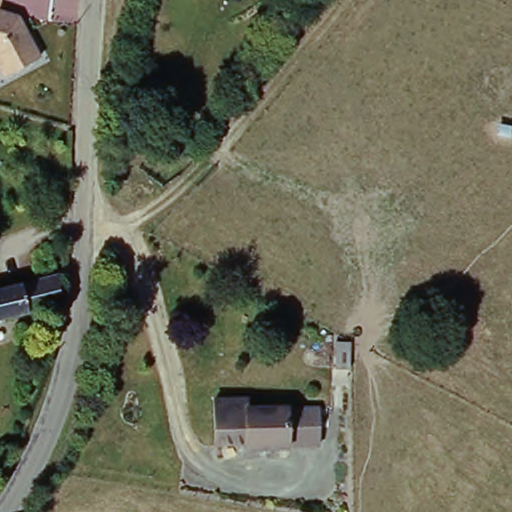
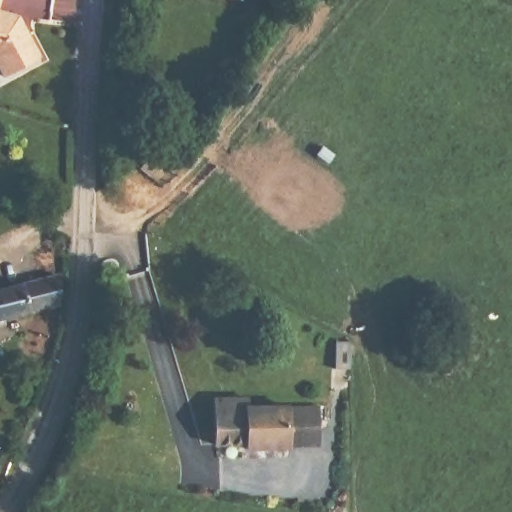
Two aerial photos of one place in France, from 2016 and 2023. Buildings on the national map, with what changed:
unchanged [(19,13),(41,55),(0,80),(0,0),(2,0),(0,9),(19,13)]
unchanged [(140,87),(159,97),(149,112),(130,101),(140,87)]
unchanged [(64,286),(64,317),(0,324),(0,294),(64,286)]
unchanged [(346,348),(346,375),(332,375),(332,348),(346,348)]
unchanged [(317,440),(292,441),(293,445),(246,447),(245,438),(219,440),(215,393),(252,391),(252,406),(290,403),(291,412),(315,411),(317,440)]

